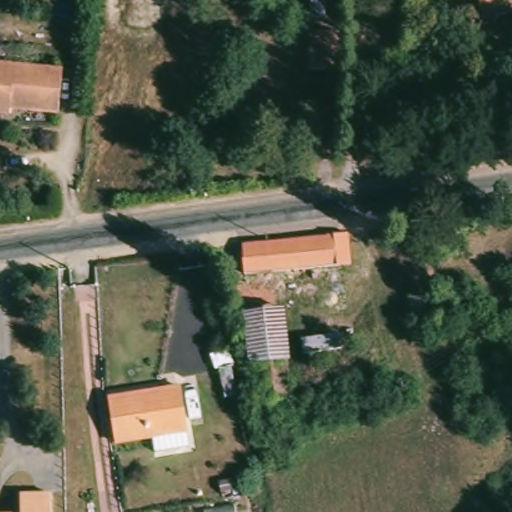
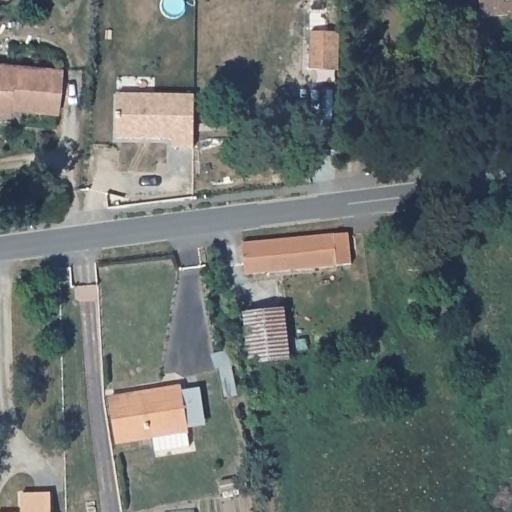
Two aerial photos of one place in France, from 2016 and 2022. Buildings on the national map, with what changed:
unchanged [(327,0),(327,15),(310,16),(309,0),(327,0)]
unchanged [(482,19),(479,0),(512,0),(512,15),(482,19)]
unchanged [(341,27),(340,35),(339,66),(310,66),(310,27),(341,27)]
unchanged [(0,114),(0,65),(61,73),(56,115),(17,111),(8,110),(7,115),(0,114)]
new [(194,95),(194,147),(173,148),(173,140),(116,140),(117,94),(194,95)]
unchanged [(348,227),(351,258),(245,266),(244,249),(231,249),(230,235),(348,227)]
unchanged [(455,237),(456,251),(433,252),(432,239),(455,237)]
unchanged [(463,287),(468,333),(458,335),(455,313),(412,318),(409,293),(463,287)]
unchanged [(242,315),(246,315),(245,302),(264,301),(265,313),(282,312),(285,362),(282,363),(256,365),(245,365),(242,315)]
unchanged [(282,363),(285,407),(257,407),(256,365),(282,363)]
unchanged [(157,455),(155,438),(117,446),(107,397),(179,386),(187,433),(190,448),(157,455)]
unchanged [(20,495),(50,495),(50,512),(20,512),(20,495)]

